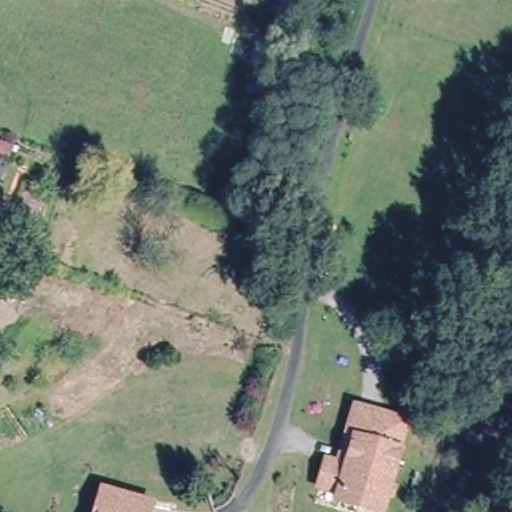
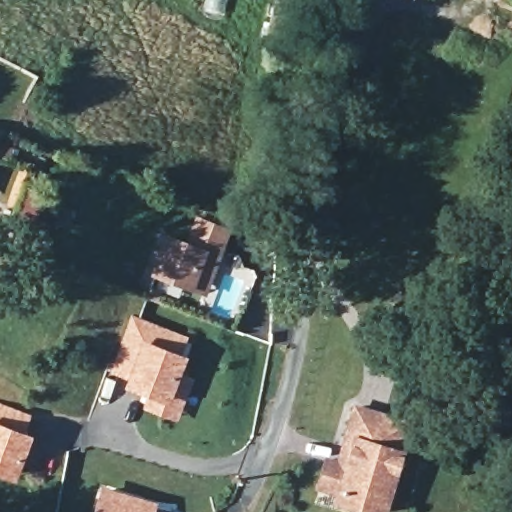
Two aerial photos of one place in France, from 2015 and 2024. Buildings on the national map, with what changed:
unchanged [(30,230),(13,223),(26,187),(44,194),(30,230)]
new [(231,228),(206,298),(192,292),(152,274),(159,251),(161,251),(168,234),(186,240),(195,215),(231,228)]
new [(179,354),(187,357),(181,371),(194,378),(177,422),(143,409),(146,395),(124,387),(128,377),(110,372),(131,315),(186,336),(179,354)]
new [(31,437),(16,482),(0,476),(0,403),(30,415),(23,433),(31,437)]
unchanged [(383,511),(344,500),(342,509),(321,503),(325,487),(324,487),(325,485),(326,486),(332,463),(332,461),(344,464),(352,438),(360,407),(403,420),(412,422),(394,485),(401,487),(398,496),(391,494),(390,497),(386,512),(383,511)]
unchanged [(106,512),(101,510),(109,487),(154,502),(151,512),(106,512)]

